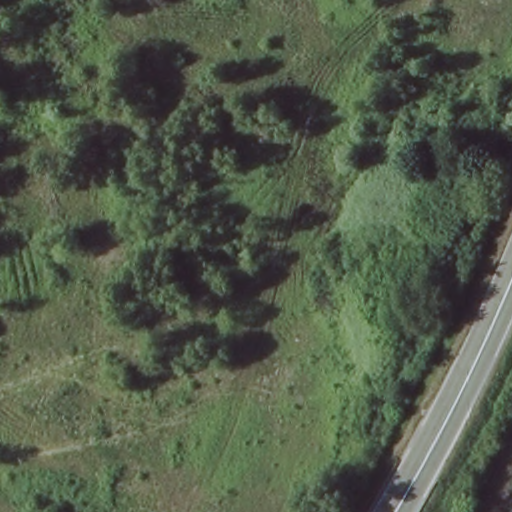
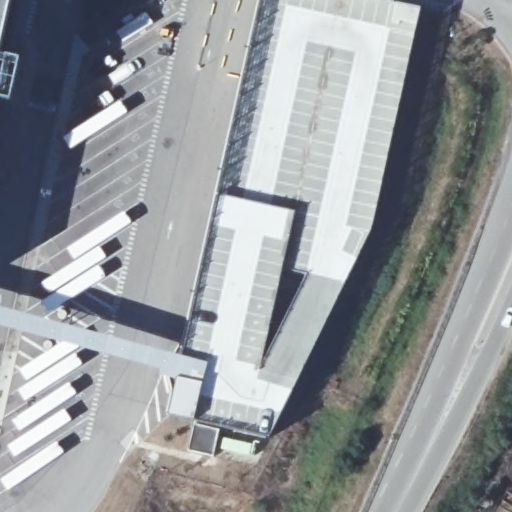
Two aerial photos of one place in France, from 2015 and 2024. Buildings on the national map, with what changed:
new [(0,0),(53,0),(0,241),(0,0)]
new [(372,231),(269,438),(212,423),(213,456),(188,450),(183,420),(168,417),(176,377),(259,0),(373,0),(418,10),(372,231)]

